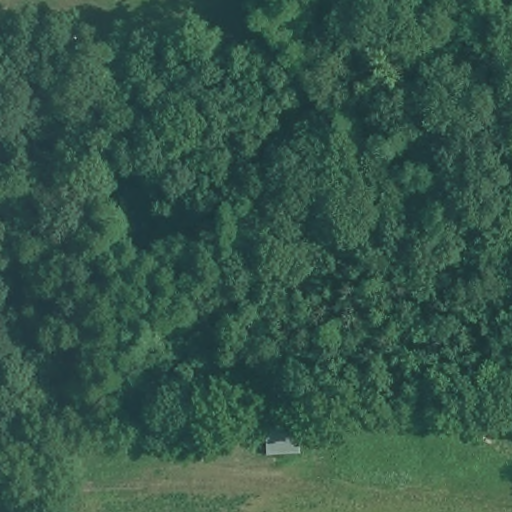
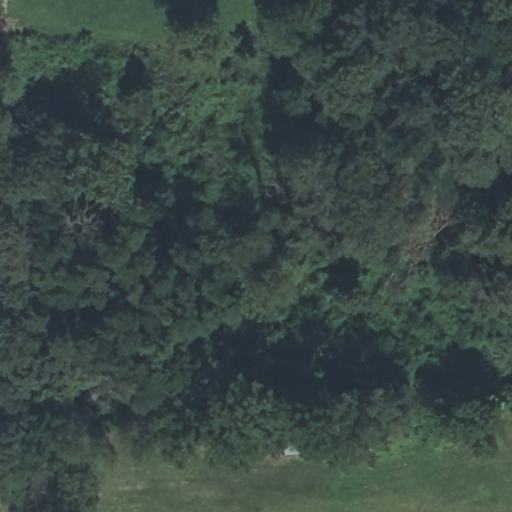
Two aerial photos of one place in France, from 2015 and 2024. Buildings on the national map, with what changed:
unchanged [(271,421),(300,422),(300,450),(268,450),(271,421)]

